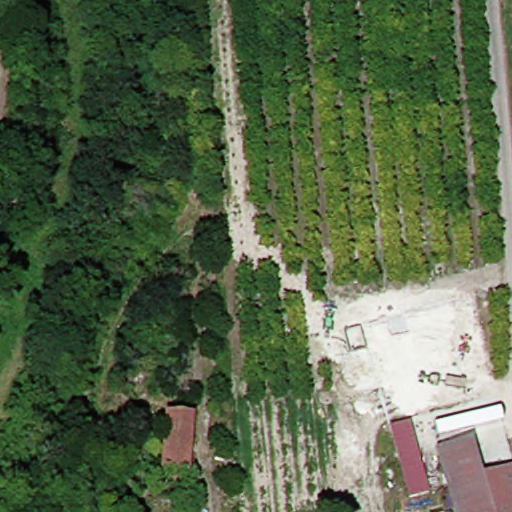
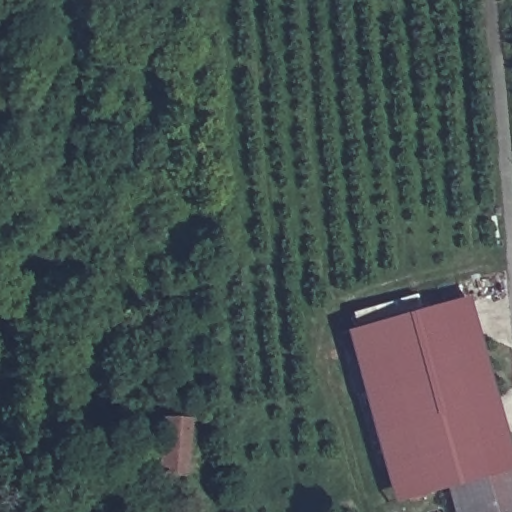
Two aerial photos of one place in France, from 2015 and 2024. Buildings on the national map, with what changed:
new [(340,333),(464,297),(510,467),(477,476),(468,438),(432,446),(433,450),(442,487),(387,505),(340,333)]
unchanged [(154,482),(156,422),(186,422),(181,483),(154,482)]
unchanged [(510,467),(512,472),(512,512),(449,512),(433,450),(432,446),(468,438),(477,476),(510,467)]

